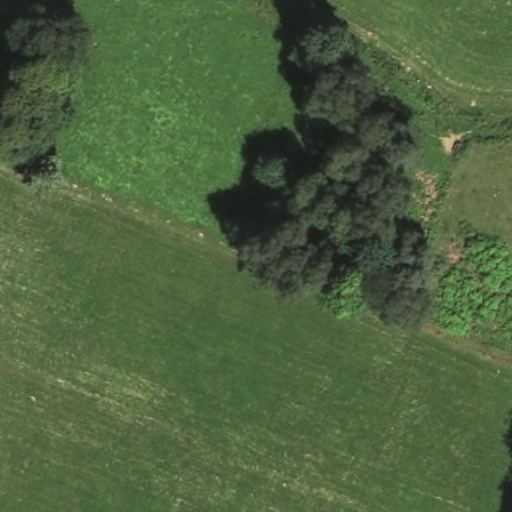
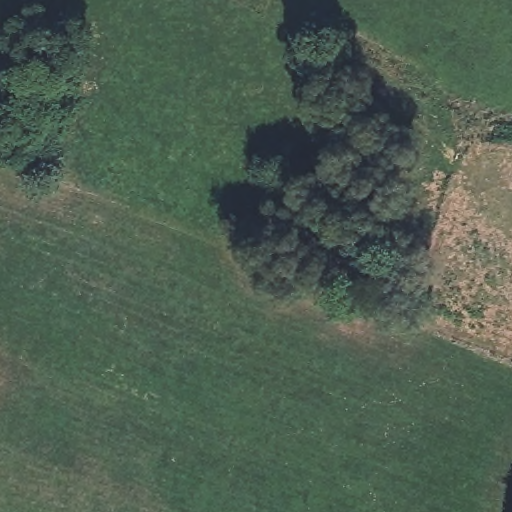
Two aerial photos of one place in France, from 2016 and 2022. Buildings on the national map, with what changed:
unchanged [(437,50),(417,82),(397,67),(418,39),(437,50)]

